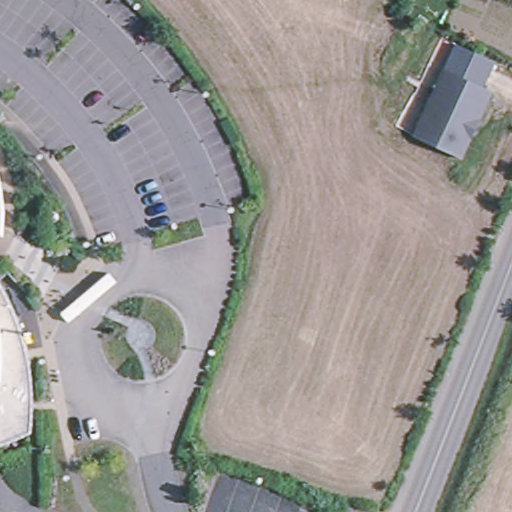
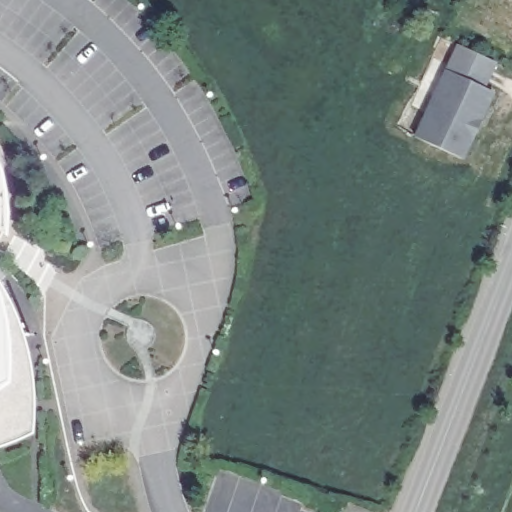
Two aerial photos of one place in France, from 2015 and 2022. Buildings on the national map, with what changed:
unchanged [(458,74),(495,91),(463,157),(417,135),(450,69),(458,74)]
unchanged [(11,298),(25,335),(30,356),(25,358),(27,421),(0,432),(0,279),(11,298)]

